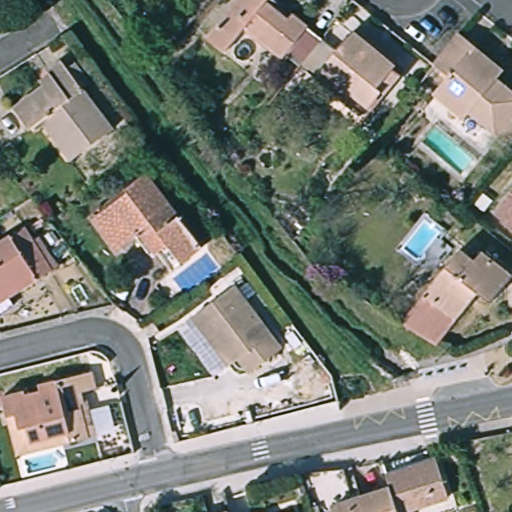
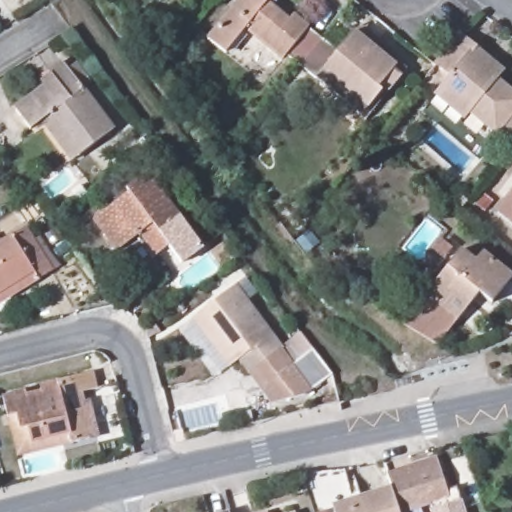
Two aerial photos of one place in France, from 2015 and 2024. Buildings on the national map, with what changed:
unchanged [(282,54),(245,24),(226,49),(208,34),(236,0),(269,0),(288,15),(293,11),(323,35),(301,62),(286,50),(282,54)]
unchanged [(323,35),(338,47),(354,27),(399,64),(363,111),(301,62),(323,35)]
unchanged [(508,141),(466,108),(461,114),(432,91),(448,71),(432,58),(454,30),(499,66),(493,75),(512,91),(512,135),(508,141)]
unchanged [(62,61),(113,129),(73,159),(41,120),(29,129),(15,108),(55,78),(49,71),(62,61)]
unchanged [(146,173),(203,248),(182,263),(168,245),(158,254),(141,232),(118,250),(93,219),(128,192),(125,189),(146,173)]
unchanged [(454,203),(460,195),(468,201),(462,209),(454,203)]
unchanged [(498,212),(512,195),(512,224),(498,212)]
unchanged [(40,248),(45,246),(57,261),(10,291),(15,300),(1,309),(0,307),(0,239),(24,224),(40,248)]
unchanged [(404,323),(462,250),(476,261),(483,252),(512,275),(512,277),(491,302),(479,292),(439,344),(404,323)]
new [(274,349),(230,290),(246,278),(258,294),(249,301),(283,344),(299,331),(332,374),(312,390),(313,392),(271,403),(246,372),(274,349)]
unchanged [(228,287),(274,349),(246,372),(236,358),(226,364),(191,316),(228,287)]
unchanged [(93,368),(96,383),(77,388),(80,399),(88,397),(94,420),(85,422),(88,434),(18,451),(3,391),(24,386),(26,389),(41,385),(41,380),(93,368)]
unchanged [(387,383),(374,388),(371,381),(384,377),(387,383)]
unchanged [(409,458),(413,467),(437,460),(449,499),(408,512),(400,512),(392,488),(385,466),(409,458)]
new [(449,499),(447,491),(457,487),(460,499),(463,499),(467,512),(432,512),(431,508),(434,508),(433,504),(449,499)]
unchanged [(400,512),(334,512),(333,507),(392,488),(400,512)]
unchanged [(226,512),(212,512),(224,508),(226,512)]
unchanged [(264,509),(265,512),(256,512),(264,509)]
unchanged [(291,509),(292,512),(283,512),(291,509)]

